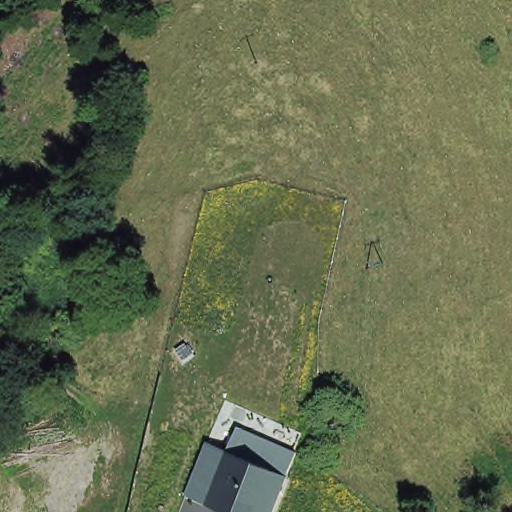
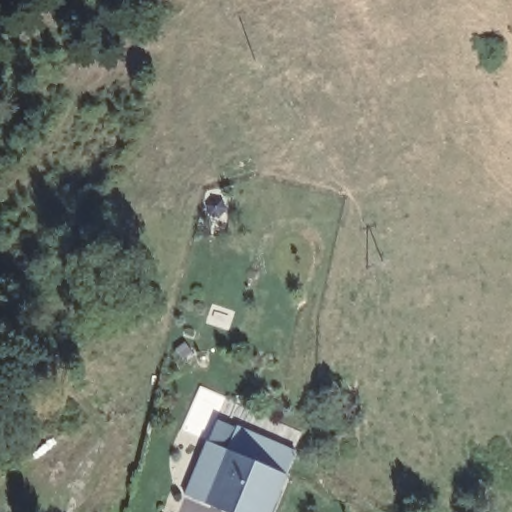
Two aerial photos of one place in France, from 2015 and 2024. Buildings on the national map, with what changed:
unchanged [(240,436),(258,446),(260,442),(296,464),(287,486),(229,458),(240,436)]
unchanged [(185,502),(208,450),(229,458),(287,486),(276,507),(273,512),(207,512),(205,511),(185,502)]

